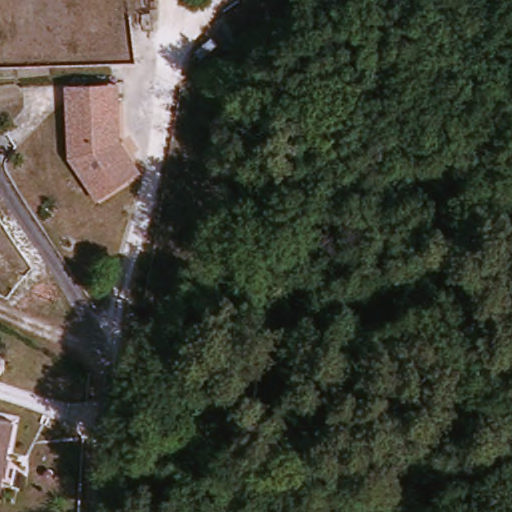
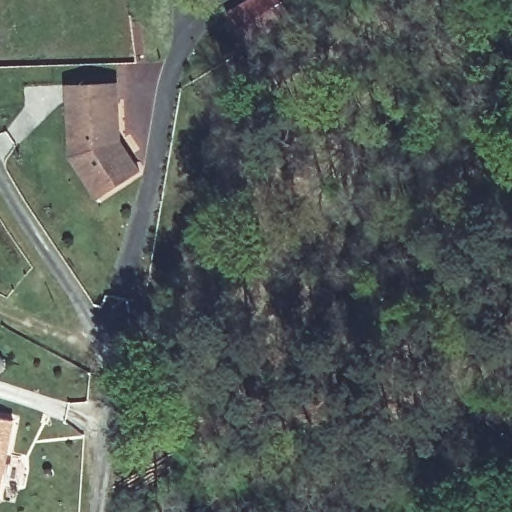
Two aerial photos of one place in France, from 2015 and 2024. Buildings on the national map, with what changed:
unchanged [(120,138),(141,171),(94,203),(64,155),(63,84),(119,80),(120,138)]
unchanged [(0,478),(0,419),(12,422),(0,478)]

